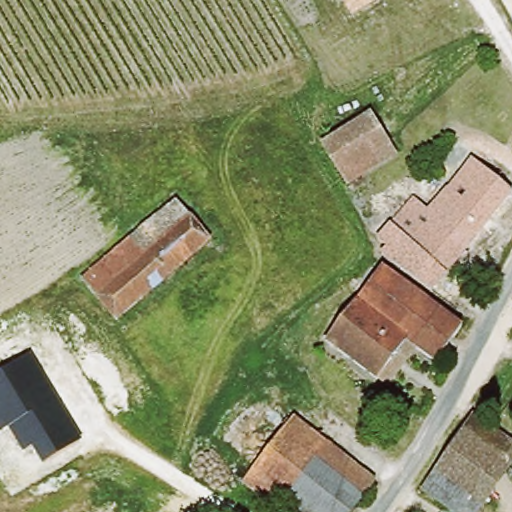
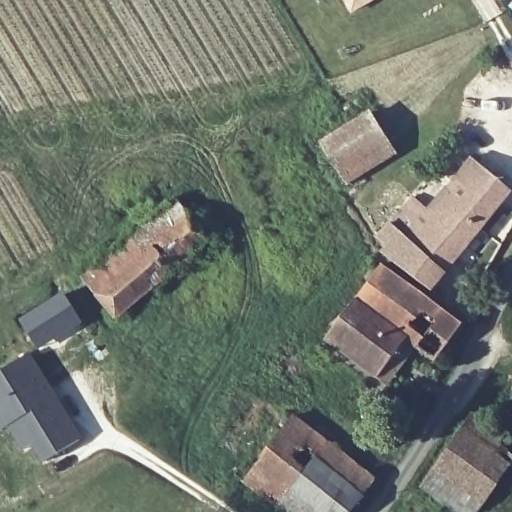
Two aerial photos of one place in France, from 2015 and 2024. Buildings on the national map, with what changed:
unchanged [(322,140),(369,112),(393,154),(344,182),(322,140)]
unchanged [(440,193),(469,155),(512,190),(512,191),(485,228),(440,193)]
unchanged [(438,199),(418,183),(422,178),(440,193),(485,228),(468,250),(424,216),(432,207),(438,199)]
unchanged [(397,221),(419,196),(432,207),(424,216),(468,250),(452,270),(397,221)]
unchanged [(213,240),(115,319),(83,276),(179,198),(213,240)]
unchanged [(436,290),(386,255),(392,247),(383,237),(397,221),(452,270),(436,290)]
unchanged [(439,359),(411,341),(381,379),(330,340),(385,266),(466,325),(439,359)]
new [(19,320),(63,294),(80,323),(36,350),(19,320)]
unchanged [(43,462),(32,446),(24,452),(8,426),(0,431),(0,374),(30,354),(83,437),(43,462)]
unchanged [(481,512),(457,512),(424,487),(478,412),(512,435),(512,467),(481,512)]
unchanged [(298,417),(380,480),(355,512),(285,512),(249,483),(298,417)]

